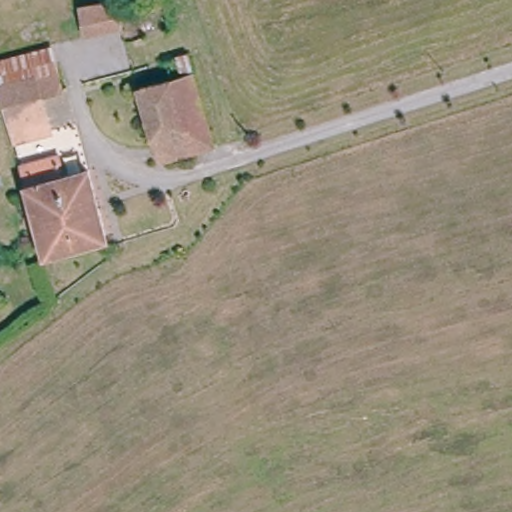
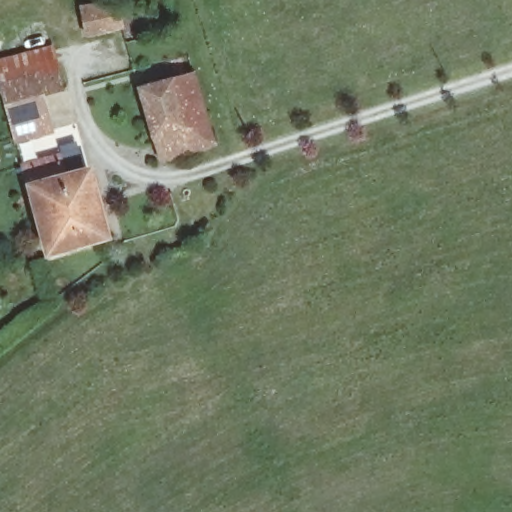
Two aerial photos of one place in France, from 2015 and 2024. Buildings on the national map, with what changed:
unchanged [(115,22),(89,31),(82,7),(111,1),(115,22)]
unchanged [(46,50),(51,69),(0,85),(0,63),(46,50)]
unchanged [(171,73),(191,66),(212,139),(158,155),(137,85),(171,73)]
unchanged [(51,69),(57,91),(40,98),(48,126),(13,136),(0,93),(0,85),(51,69)]
unchanged [(44,252),(20,163),(54,154),(60,175),(86,168),(103,235),(102,235),(44,252)]

